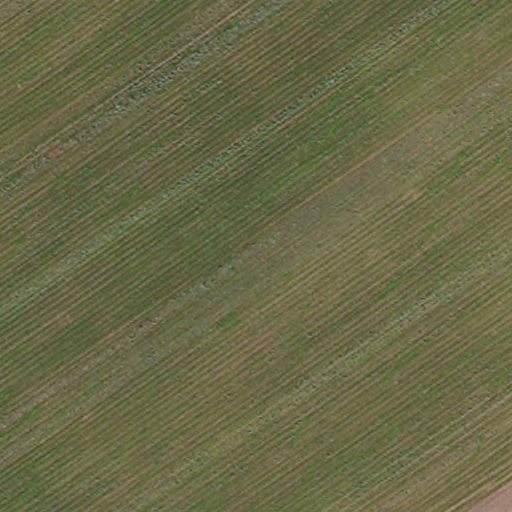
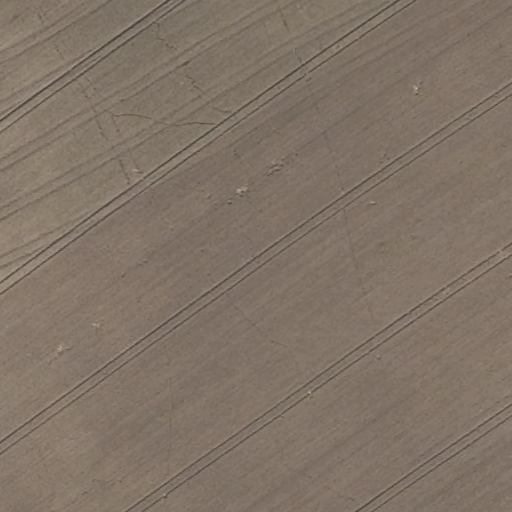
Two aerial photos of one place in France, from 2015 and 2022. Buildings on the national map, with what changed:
[]

